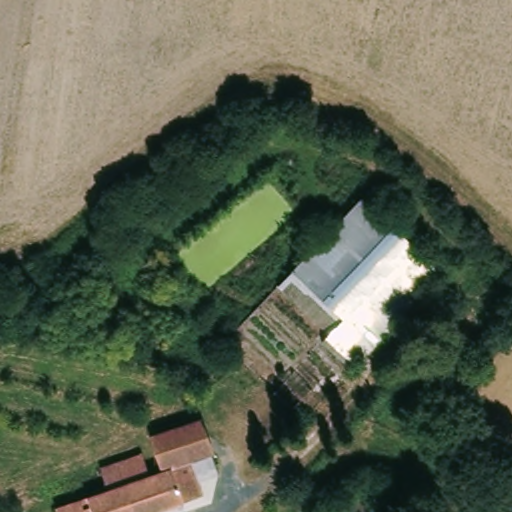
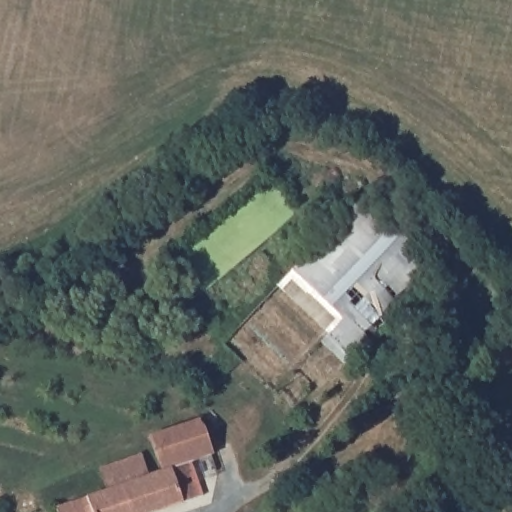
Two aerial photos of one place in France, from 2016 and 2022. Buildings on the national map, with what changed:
unchanged [(443,272),(352,365),(322,337),(327,332),(275,285),(360,196),(443,272)]
unchanged [(187,461),(160,471),(150,442),(150,437),(195,421),(202,449),(204,455),(187,461)]
unchanged [(52,510),(105,491),(99,473),(137,458),(145,478),(126,487),(135,512),(53,512),(52,510)]
unchanged [(187,461),(197,493),(144,512),(135,512),(126,487),(145,478),(149,476),(160,471),(187,461)]

